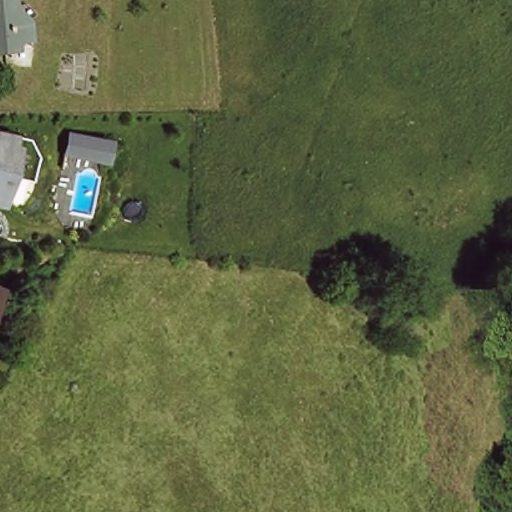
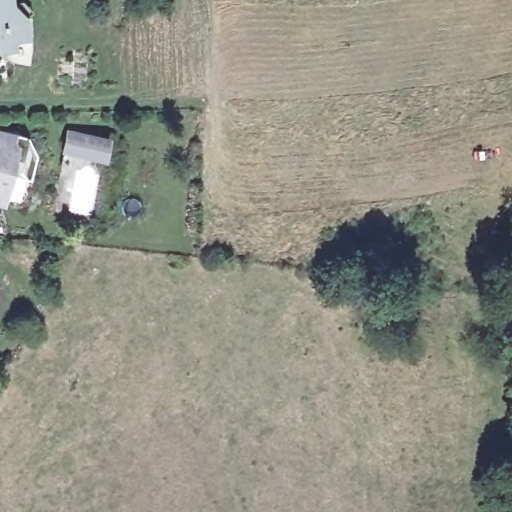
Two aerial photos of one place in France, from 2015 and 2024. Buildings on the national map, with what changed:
unchanged [(11,9),(19,8),(30,25),(29,39),(15,39),(15,50),(0,50),(0,0),(12,0),(11,9)]
unchanged [(12,133),(3,169),(7,170),(0,198),(0,130),(12,133)]
unchanged [(114,137),(109,162),(65,154),(72,130),(114,137)]
unchanged [(29,138),(38,152),(32,176),(7,170),(3,169),(12,133),(29,138)]

